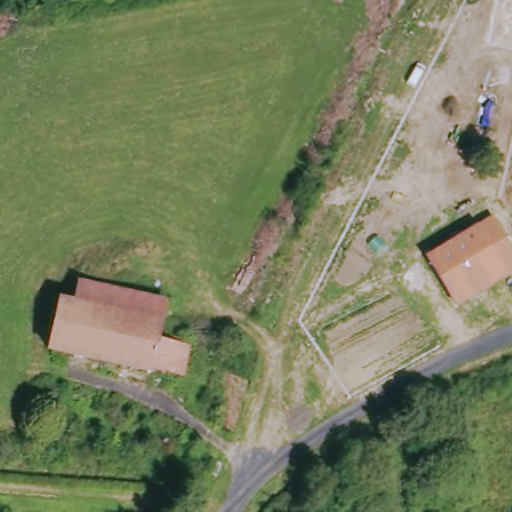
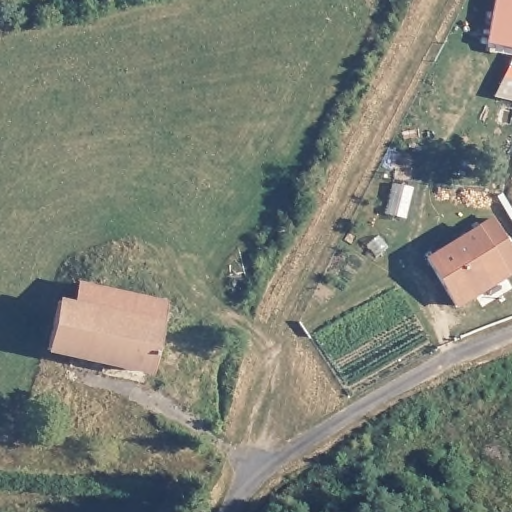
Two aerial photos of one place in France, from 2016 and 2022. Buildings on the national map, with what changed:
new [(495,0),(512,0),(512,47),(487,41),(495,0)]
unchanged [(475,225),(492,216),(512,248),(512,273),(506,277),(453,308),(423,256),(475,225)]
unchanged [(168,302),(164,323),(74,303),(79,282),(168,302)]
unchanged [(164,323),(160,339),(191,345),(184,375),(155,369),(155,373),(49,349),(59,300),(74,303),(164,323)]

